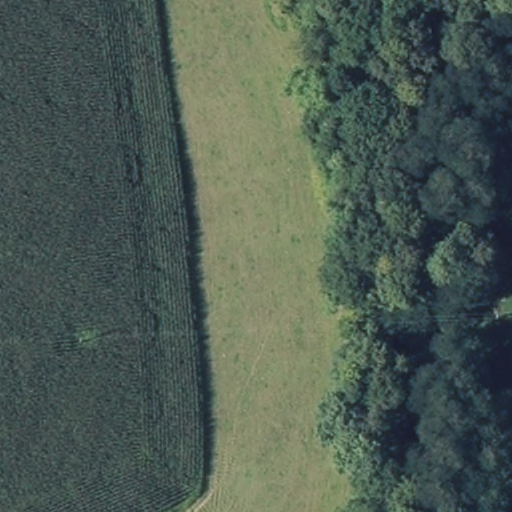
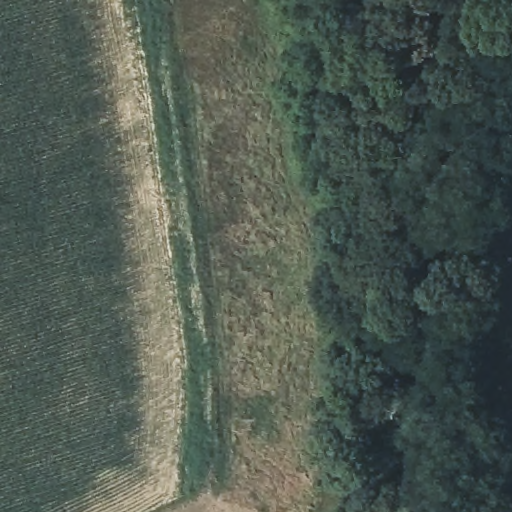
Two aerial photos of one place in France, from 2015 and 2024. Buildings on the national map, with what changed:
[]

